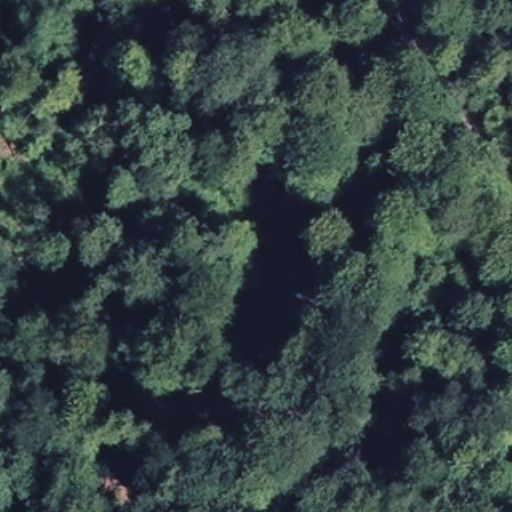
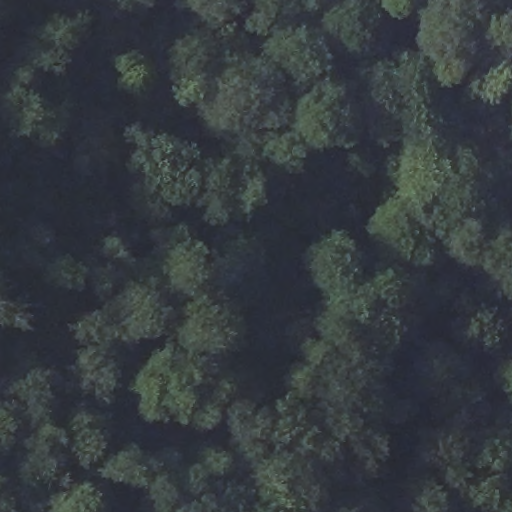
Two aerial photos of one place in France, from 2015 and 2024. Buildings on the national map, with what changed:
[]

